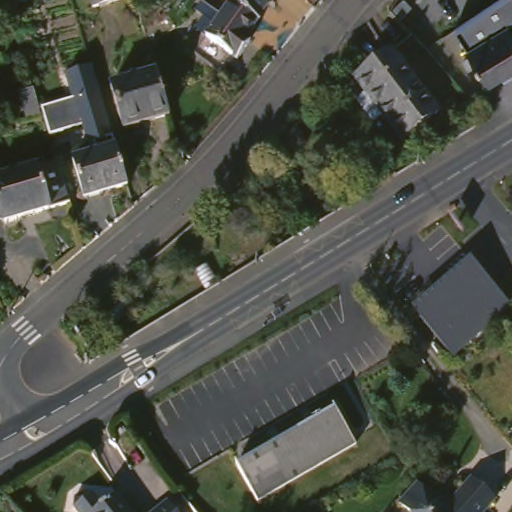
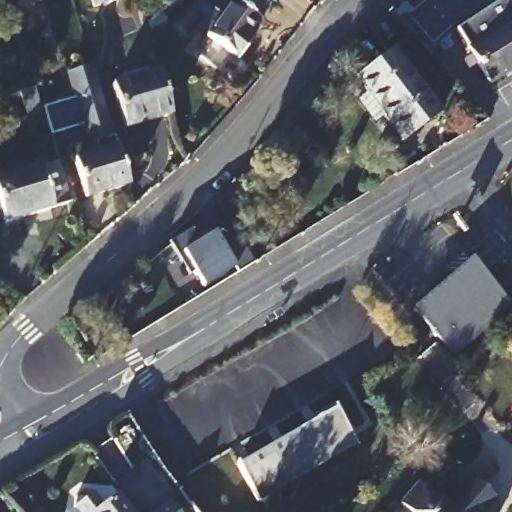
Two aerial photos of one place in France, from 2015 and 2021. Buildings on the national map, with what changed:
unchanged [(99,4),(97,0),(111,0),(99,4)]
unchanged [(232,8),(235,8),(240,0),(260,0),(272,8),(260,24),(263,26),(250,43),(255,46),(242,64),(210,40),(232,8)]
unchanged [(400,22),(392,15),(403,5),(410,12),(400,22)]
unchanged [(490,80),(472,45),(512,22),(512,69),(490,80)]
unchanged [(360,85),(396,55),(444,117),(407,146),(360,85)]
unchanged [(90,66),(115,149),(93,157),(82,125),(51,134),(45,107),(72,98),(65,74),(90,66)]
unchanged [(161,74),(174,117),(129,131),(116,87),(127,84),(126,78),(152,70),(154,74),(160,73),(161,74)]
unchanged [(135,185),(87,200),(77,163),(126,146),(135,185)]
unchanged [(62,161),(65,171),(75,203),(7,223),(7,222),(0,225),(0,167),(4,179),(62,161)]
new [(196,228),(205,241),(218,233),(223,241),(239,232),(257,263),(240,273),(235,264),(225,271),(225,272),(205,284),(195,268),(190,271),(172,242),(196,228)]
unchanged [(471,259),(510,305),(452,358),(411,308),(471,259)]
unchanged [(340,405),(360,438),(263,494),(244,461),(340,405)]
unchanged [(448,509),(476,481),(498,505),(491,512),(412,512),(403,502),(423,483),(448,509)]
unchanged [(90,497),(99,499),(109,511),(123,500),(133,512),(81,512),(82,503),(90,497)]
unchanged [(176,512),(168,512),(173,508),(176,512)]

